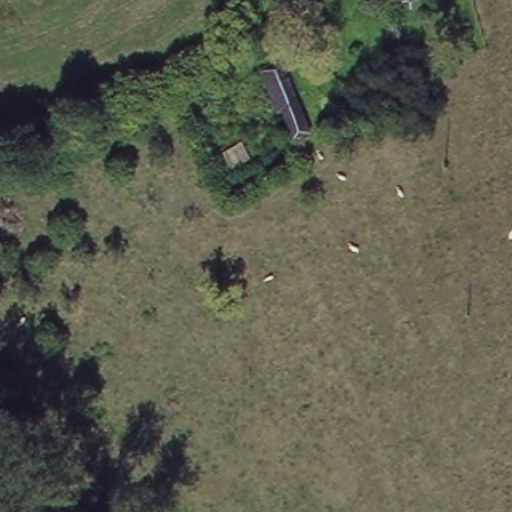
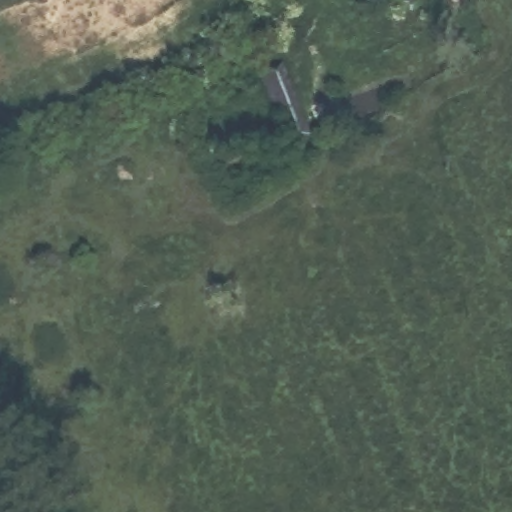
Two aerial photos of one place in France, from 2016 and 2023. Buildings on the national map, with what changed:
unchanged [(307,142),(298,145),(305,170),(295,174),(262,76),(282,69),(307,142)]

